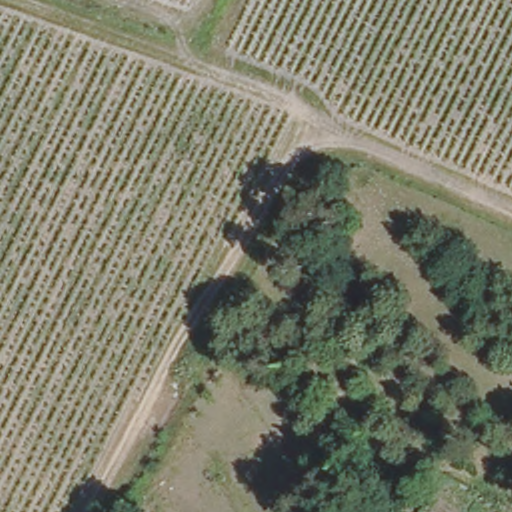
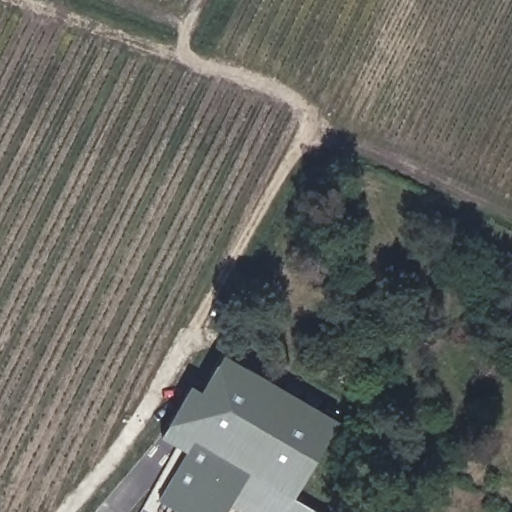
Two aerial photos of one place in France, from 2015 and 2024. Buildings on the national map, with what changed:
new [(295,496),(320,512),(249,512),(233,502),(227,512),(181,512),(182,510),(160,498),(187,448),(163,433),(194,383),(203,388),(224,352),(342,420),(295,496)]

